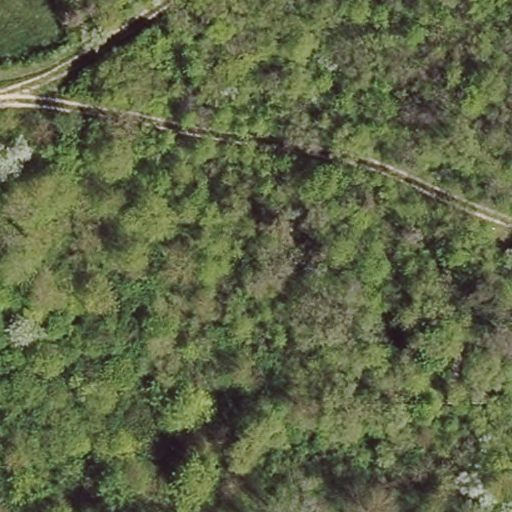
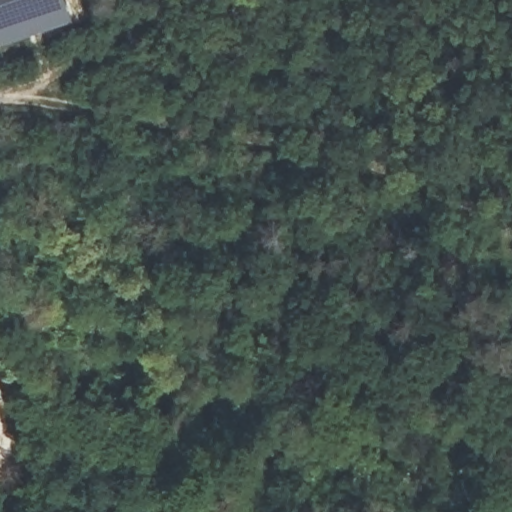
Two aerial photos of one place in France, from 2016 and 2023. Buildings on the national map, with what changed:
new [(0,42),(0,0),(65,0),(71,19),(0,42)]

